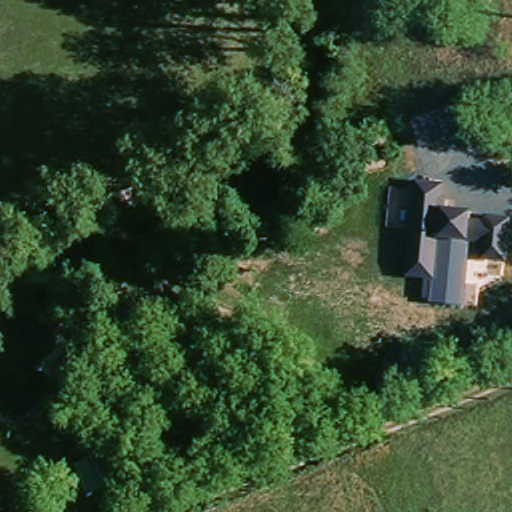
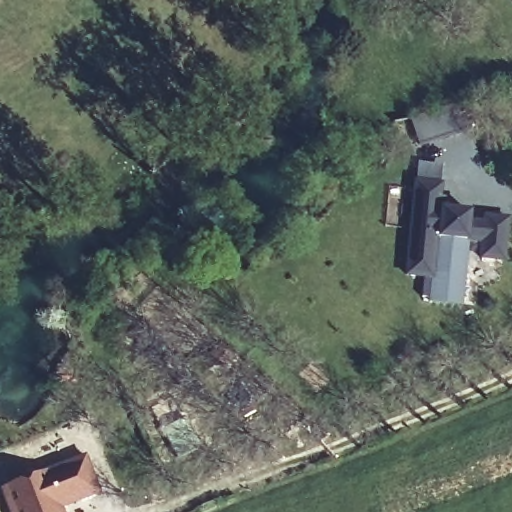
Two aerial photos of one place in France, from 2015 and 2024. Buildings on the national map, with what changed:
unchanged [(442,209),(512,213),(512,219),(508,262),(478,260),(478,244),(470,244),(465,307),(422,303),(424,278),(405,277),(412,181),(445,183),(442,209)]
new [(63,512),(9,512),(0,490),(86,455),(101,494),(62,509),(63,512)]

